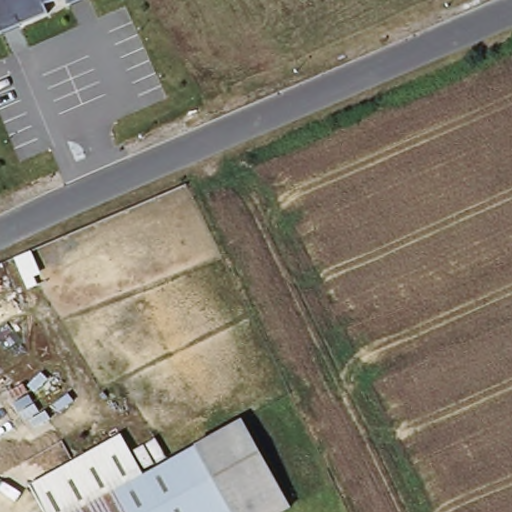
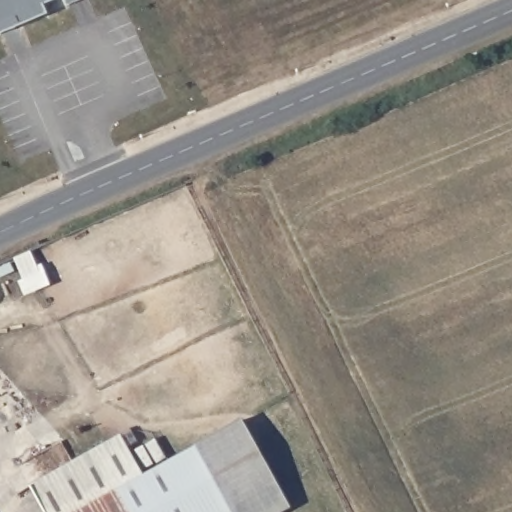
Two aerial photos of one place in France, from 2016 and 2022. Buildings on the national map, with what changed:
unchanged [(47,6),(50,13),(2,32),(0,29),(0,0),(62,0),(47,6)]
unchanged [(289,510),(284,512),(229,512),(194,448),(242,422),(289,510)]
unchanged [(149,473),(118,490),(100,499),(76,512),(44,512),(30,482),(123,430),(149,473)]
unchanged [(118,490),(149,473),(194,448),(229,512),(76,512),(100,499),(118,490)]

